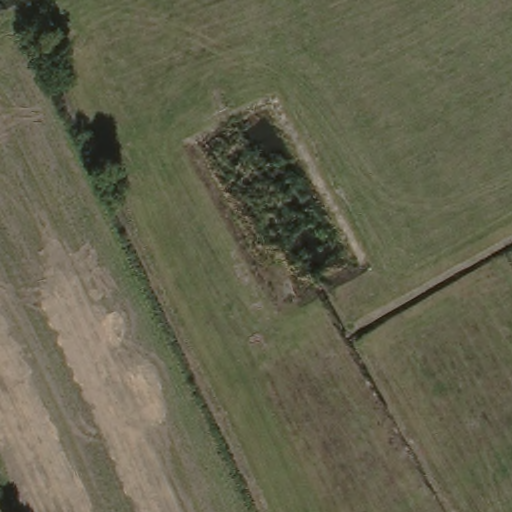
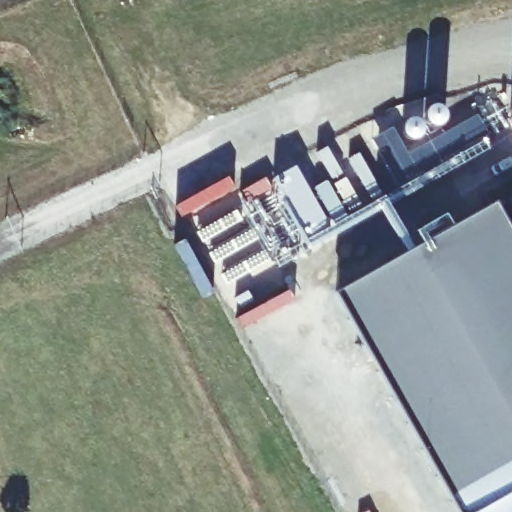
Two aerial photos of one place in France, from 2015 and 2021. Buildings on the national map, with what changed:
new [(495,205),(512,236),(512,512),(456,512),(335,295),(495,205)]

